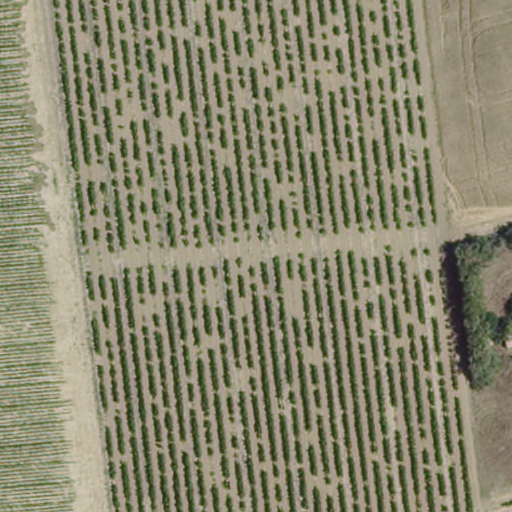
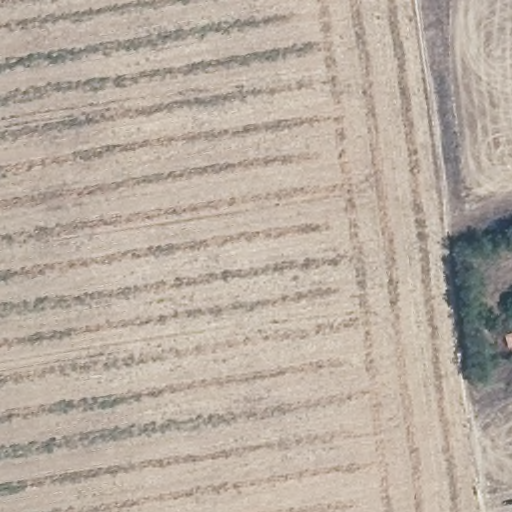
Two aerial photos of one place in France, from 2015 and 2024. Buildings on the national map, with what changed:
unchanged [(509,348),(506,333),(512,332),(512,347),(509,348)]

